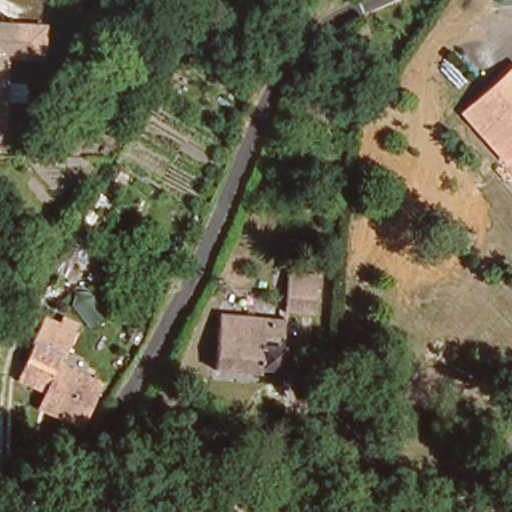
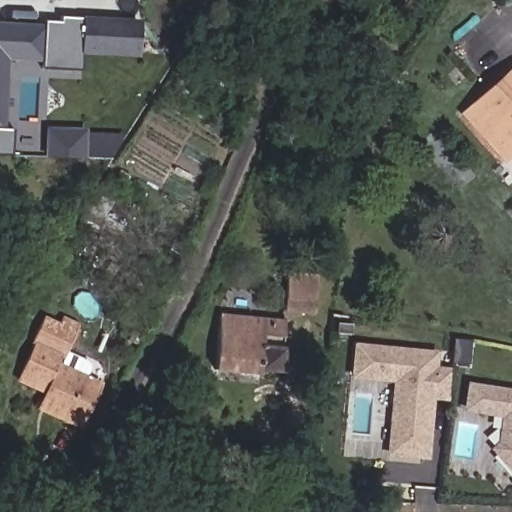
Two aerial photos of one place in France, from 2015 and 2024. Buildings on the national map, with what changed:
new [(42,57),(45,23),(44,20),(60,21),(60,16),(140,20),(139,56),(80,55),(79,70),(40,68),(42,57)]
unchanged [(42,57),(27,56),(8,55),(3,124),(0,124),(0,21),(45,23),(42,57)]
unchanged [(512,59),(512,149),(499,160),(462,118),(453,107),(480,84),(511,58),(512,59)]
new [(86,128),(86,132),(123,134),(110,159),(86,159),(43,157),(44,127),(86,128)]
new [(3,275),(0,274),(0,264),(7,268),(3,275)]
unchanged [(315,272),(308,305),(278,300),(284,266),(315,272)]
unchanged [(260,335),(253,369),(252,372),(206,363),(219,308),(284,320),(280,337),(260,335)]
unchanged [(42,387),(14,379),(34,311),(46,315),(47,311),(66,317),(52,361),(98,375),(84,420),(65,414),(36,405),(40,394),(42,387)]
new [(358,344),(438,352),(437,368),(454,370),(451,395),(434,395),(428,455),(391,451),(398,378),(356,374),(358,344)]
new [(475,387),(512,393),(512,469),(495,451),(509,438),(503,431),(505,415),(472,410),(475,387)]

